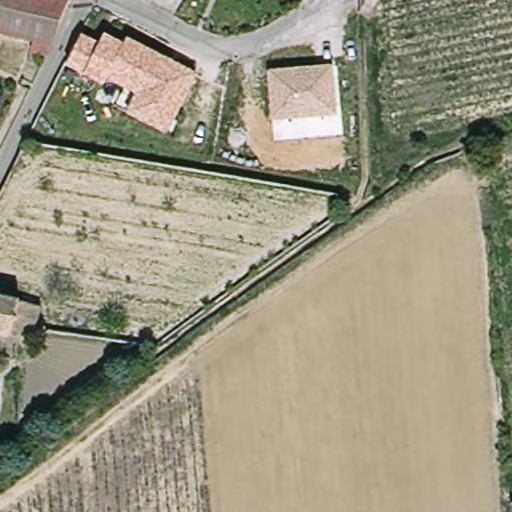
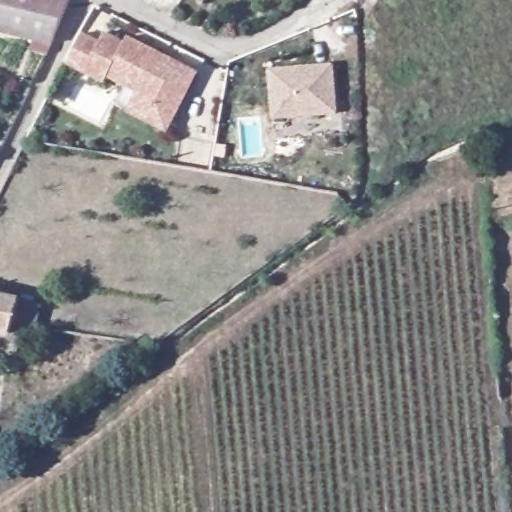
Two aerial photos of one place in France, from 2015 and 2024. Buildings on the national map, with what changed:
unchanged [(30,46),(35,31),(36,30),(0,24),(0,0),(62,0),(48,34),(41,50),(30,46)]
unchanged [(166,10),(149,0),(171,0),(166,10)]
unchanged [(135,91),(104,76),(101,82),(63,63),(78,34),(96,43),(101,34),(121,43),(124,37),(193,72),(171,116),(164,130),(125,111),(132,97),(135,91)]
unchanged [(327,64),(330,112),(267,117),(264,68),(327,64)]
unchanged [(9,333),(0,330),(0,293),(40,303),(36,318),(31,338),(9,333)]
unchanged [(512,494),(512,512),(500,512),(499,496),(512,494)]

